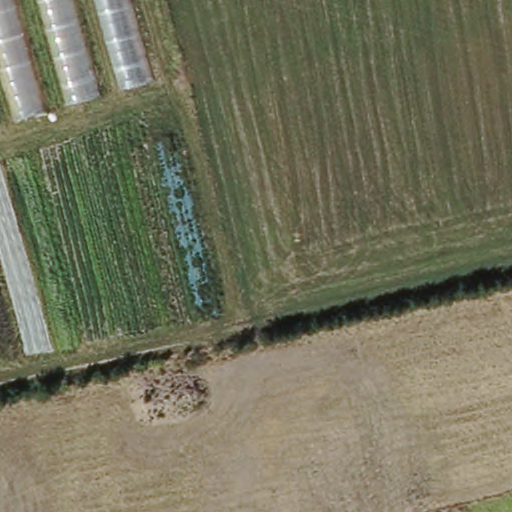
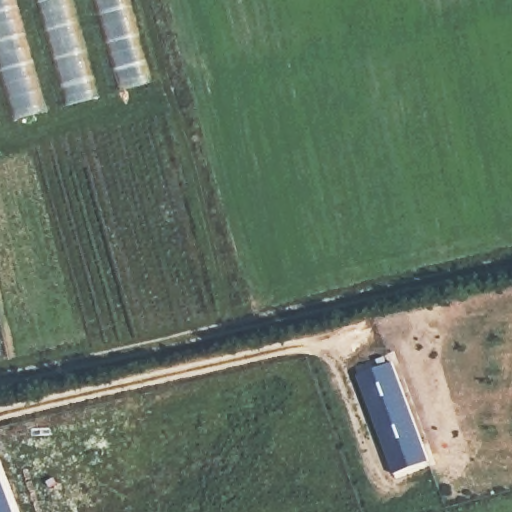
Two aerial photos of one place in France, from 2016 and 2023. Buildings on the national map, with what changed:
unchanged [(98,104),(100,115),(0,142),(0,0),(124,0),(149,89),(98,104)]
new [(359,375),(394,362),(431,461),(397,473),(359,375)]
new [(0,472),(15,512),(0,512),(0,472)]

